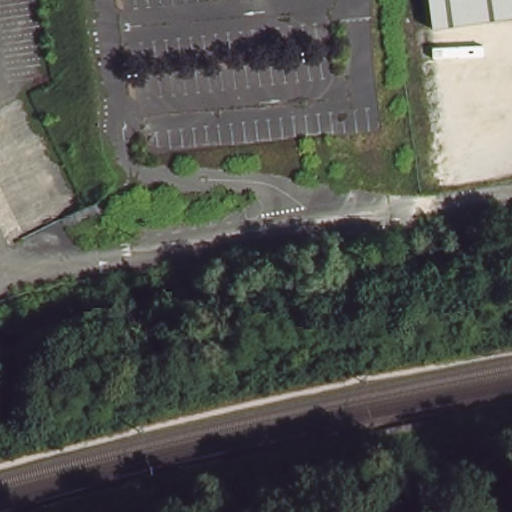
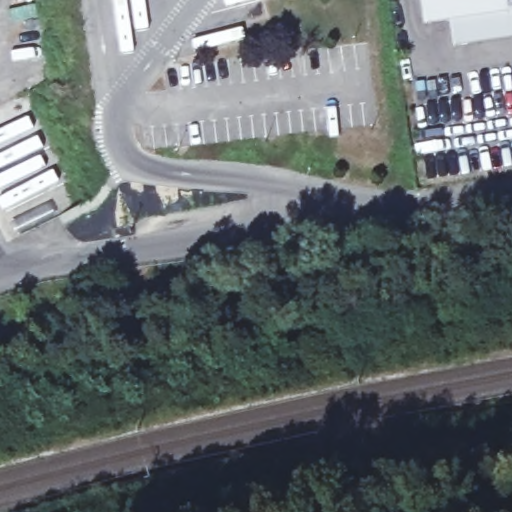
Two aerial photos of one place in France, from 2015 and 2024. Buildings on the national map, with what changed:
unchanged [(422,0),(512,0),(512,11),(425,24),(422,0)]

